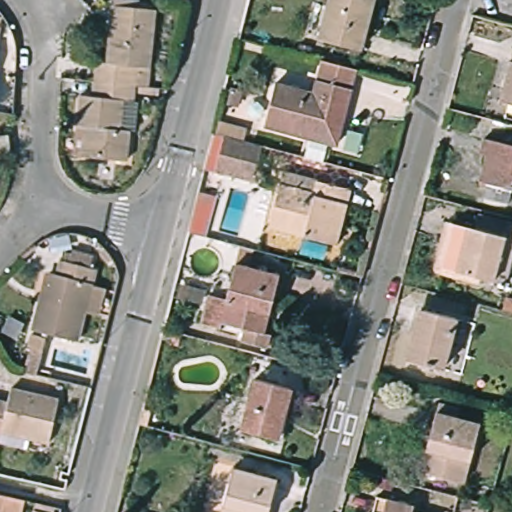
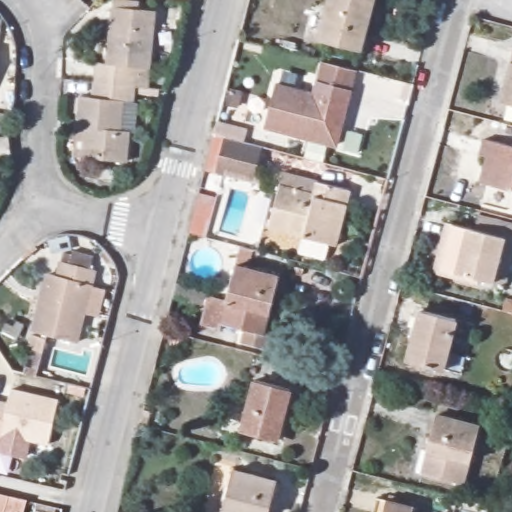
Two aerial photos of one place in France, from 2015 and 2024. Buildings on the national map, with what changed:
unchanged [(358,52),(318,42),(328,0),(370,0),(358,52)]
unchanged [(93,91),(92,74),(101,74),(102,14),(146,15),(145,73),(132,72),(132,91),(93,91)]
unchanged [(512,45),(512,108),(496,104),(512,45)]
unchanged [(277,83),(312,92),(320,60),(327,62),(350,68),(331,145),(323,143),(318,162),(300,157),(305,138),(266,127),(277,83)]
unchanged [(131,106),(125,105),(125,131),(131,131),(130,155),(87,156),(85,137),(78,135),(80,107),(93,106),(93,91),(132,91),(131,106)]
unchanged [(259,143),(250,178),(203,166),(212,131),(259,143)]
unchanged [(0,157),(0,138),(7,138),(10,156),(0,157)]
unchanged [(512,189),(511,194),(478,186),(485,156),(477,154),(481,142),(512,150),(512,189)]
unchanged [(330,240),(299,232),(300,231),(265,222),(279,168),(345,185),(330,240)]
unchanged [(216,204),(205,243),(186,239),(197,199),(216,204)]
unchanged [(503,234),(491,278),(485,277),(482,286),(440,275),(438,272),(437,268),(438,264),(450,220),(503,234)]
unchanged [(246,268),(276,276),(267,310),(262,309),(256,333),(224,325),(230,300),(225,300),(238,246),(250,249),(246,268)]
unchanged [(92,269),(75,339),(32,329),(48,270),(56,271),(59,262),(92,269)]
unchanged [(450,316),(437,372),(402,361),(417,306),(450,316)]
unchanged [(287,384),(276,433),(242,423),(253,376),(287,384)]
unchanged [(5,413),(11,391),(60,402),(53,444),(2,432),(0,443),(0,413),(5,413)]
unchanged [(481,430),(470,463),(465,461),(458,484),(427,475),(433,454),(427,452),(436,419),(481,430)]
unchanged [(265,512),(221,512),(222,507),(217,505),(226,470),(271,481),(265,512)]
unchanged [(27,512),(0,512),(0,499),(29,505),(27,512)]
unchanged [(406,508),(405,512),(379,512),(381,501),(406,508)]
unchanged [(33,512),(33,510),(40,512),(33,512)]

